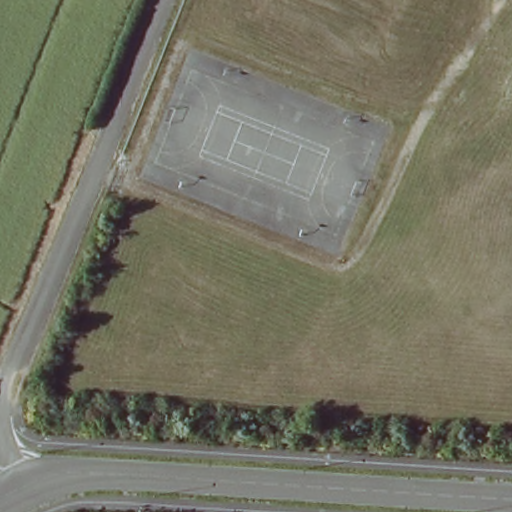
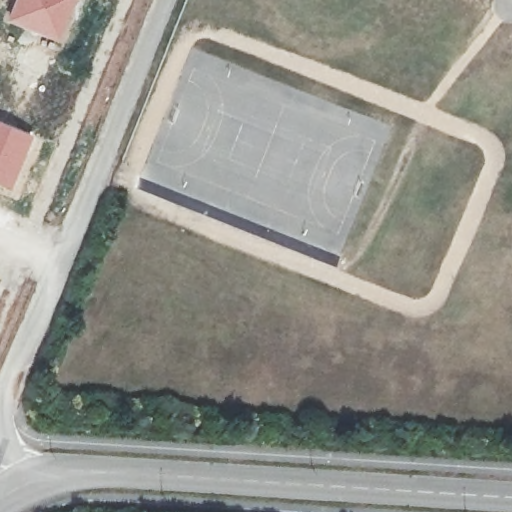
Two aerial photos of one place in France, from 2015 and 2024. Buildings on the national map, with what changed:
new [(74,0),(59,41),(6,20),(13,0),(74,0)]
new [(33,133),(10,187),(0,184),(0,120),(33,133)]

